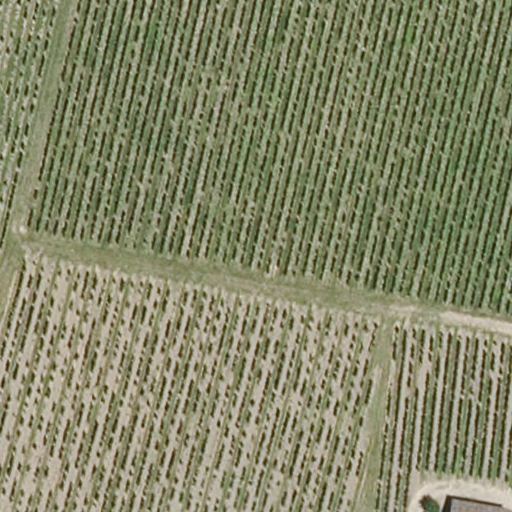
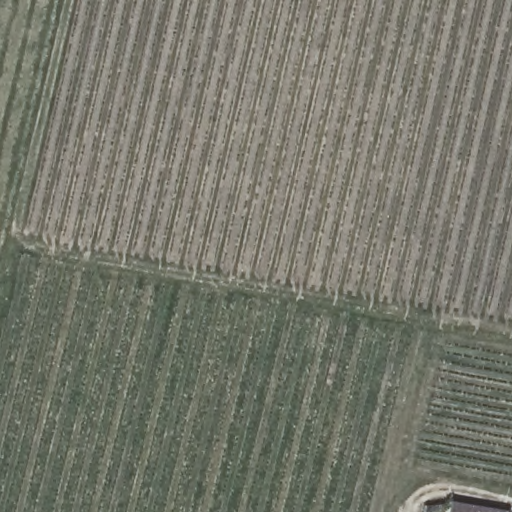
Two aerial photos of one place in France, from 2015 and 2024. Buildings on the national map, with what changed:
unchanged [(450,505),(489,512),(449,512),(450,505)]

